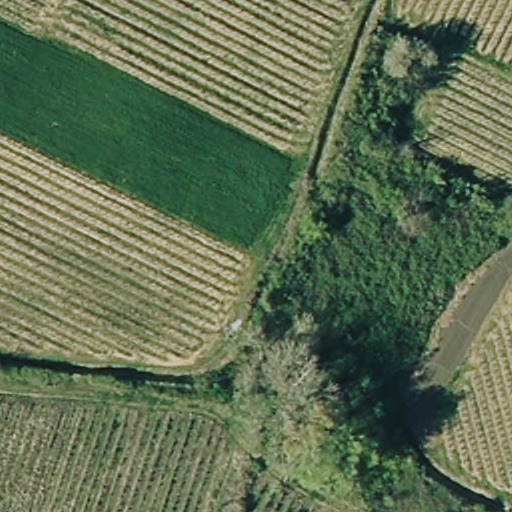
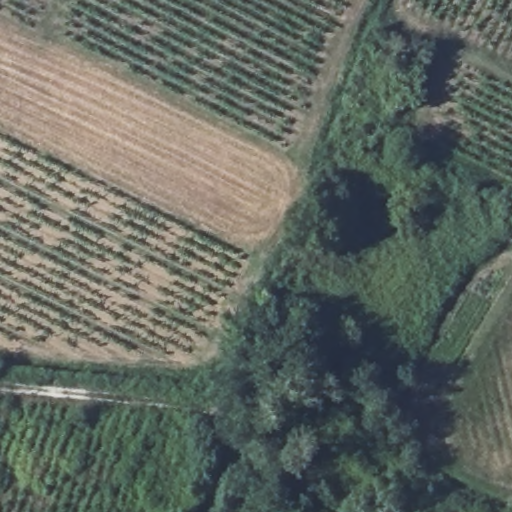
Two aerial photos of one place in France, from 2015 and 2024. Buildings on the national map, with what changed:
[]

